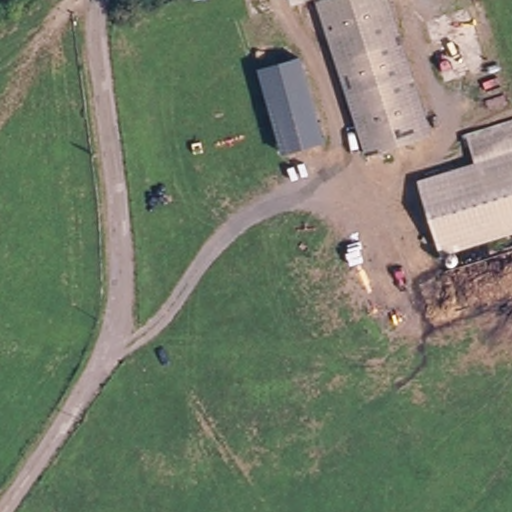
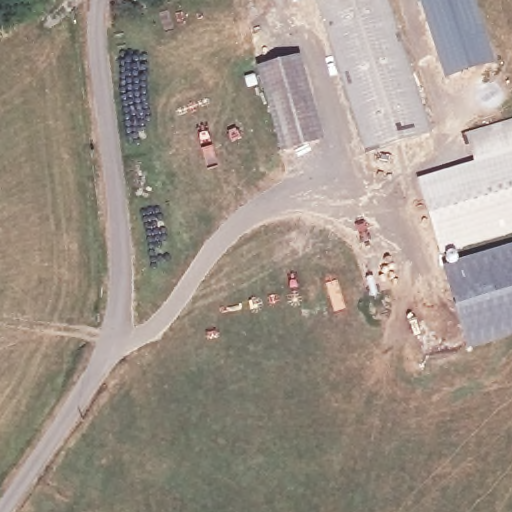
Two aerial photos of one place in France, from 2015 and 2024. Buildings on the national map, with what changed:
unchanged [(295,11),(292,0),(321,0),(317,3),(295,11)]
unchanged [(389,0),(432,141),(368,164),(317,3),(321,0),(389,0)]
new [(446,81),(420,3),(427,0),(477,0),(497,64),(446,81)]
unchanged [(262,69),(302,58),(325,140),(284,151),(262,69)]
unchanged [(440,255),(417,181),(477,165),(470,134),(504,126),(512,124),(512,235),(440,255)]
new [(470,349),(443,268),(512,246),(512,336),(470,349)]

